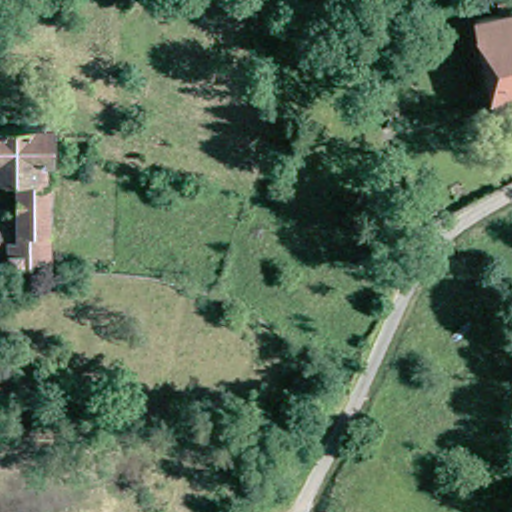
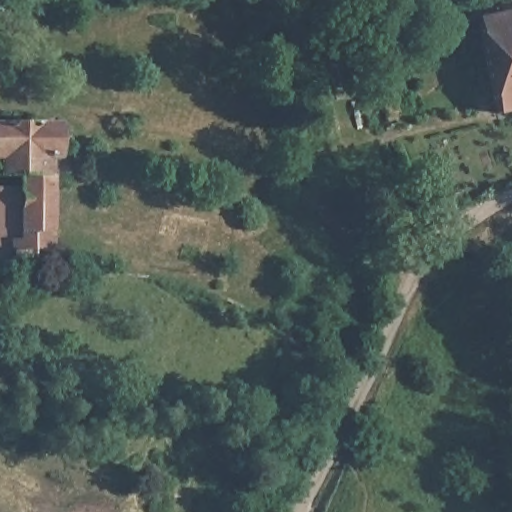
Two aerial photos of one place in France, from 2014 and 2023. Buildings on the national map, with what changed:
unchanged [(495,115),(476,22),(500,17),(500,11),(512,9),(512,110),(495,115)]
unchanged [(52,129),(57,129),(59,151),(53,151),(53,265),(15,268),(15,248),(24,247),(23,178),(0,178),(0,171),(0,128),(52,126),(52,129)]

